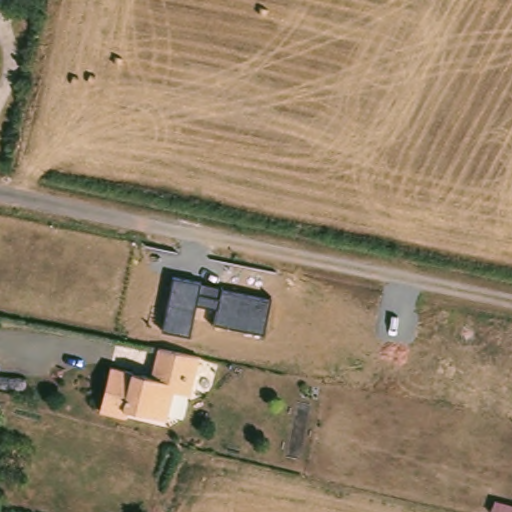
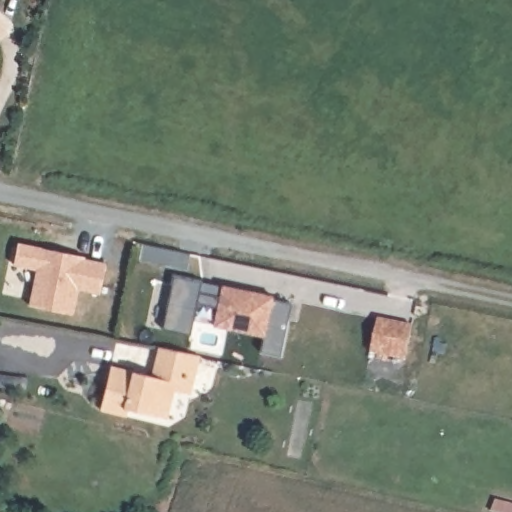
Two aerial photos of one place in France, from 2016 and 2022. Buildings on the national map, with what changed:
new [(18,244),(42,249),(41,252),(52,254),(53,251),(85,258),(84,260),(106,264),(100,295),(78,290),(73,315),(30,307),(37,271),(14,266),(18,244)]
unchanged [(273,297),(265,333),(213,321),(216,308),(199,304),(190,336),(161,329),(173,276),(273,297)]
unchanged [(154,377),(160,353),(195,360),(190,386),(173,384),(166,418),(129,410),(126,419),(99,413),(109,368),(154,377)]

